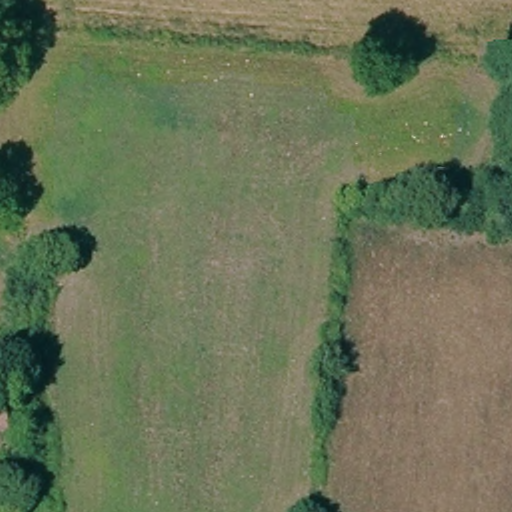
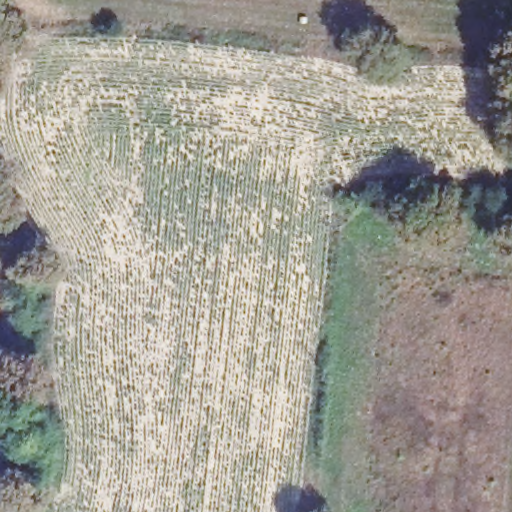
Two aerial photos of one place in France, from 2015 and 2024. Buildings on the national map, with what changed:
unchanged [(0,399),(6,399),(6,428),(0,428),(0,399)]

